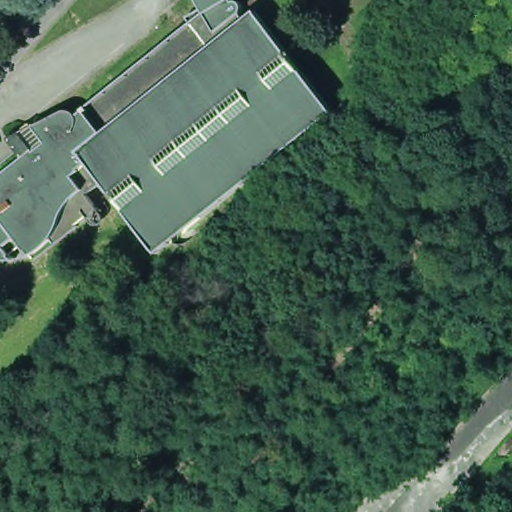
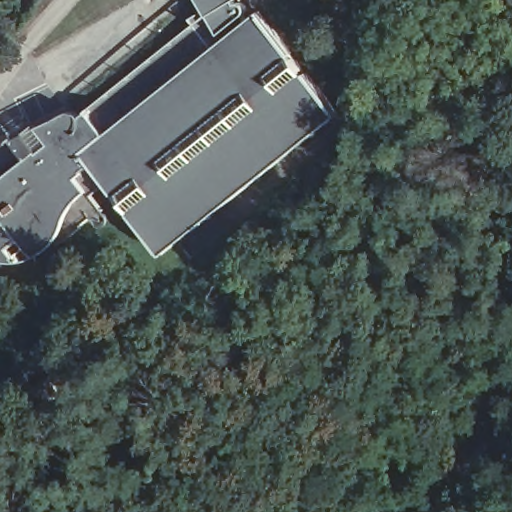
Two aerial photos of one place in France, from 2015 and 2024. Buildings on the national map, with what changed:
unchanged [(342,120),(164,254),(97,165),(92,168),(95,189),(59,234),(23,256),(0,266),(0,184),(27,163),(15,146),(81,110),(103,132),(230,35),(203,0),(252,0),(243,8),(342,120)]

